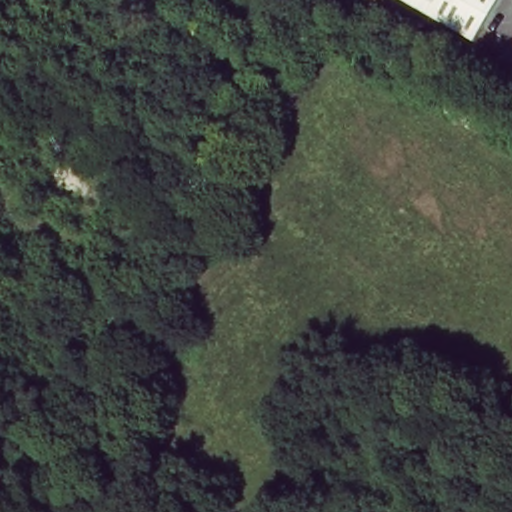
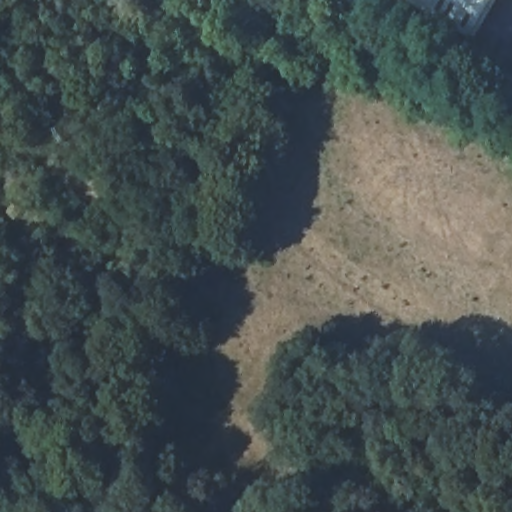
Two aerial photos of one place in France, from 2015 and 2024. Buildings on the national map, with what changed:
unchanged [(480,38),(479,40),(403,0),(512,0),(512,44),(485,27),(480,38)]

